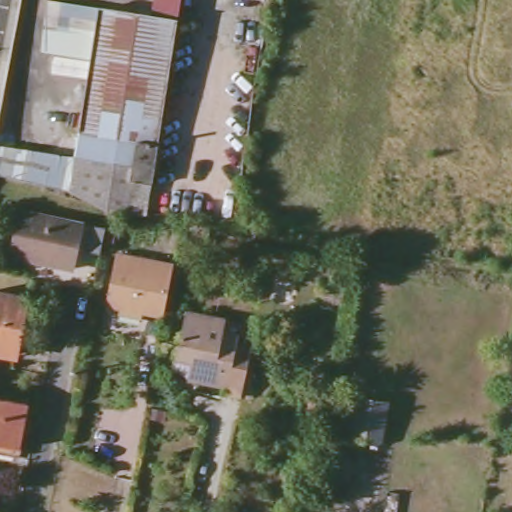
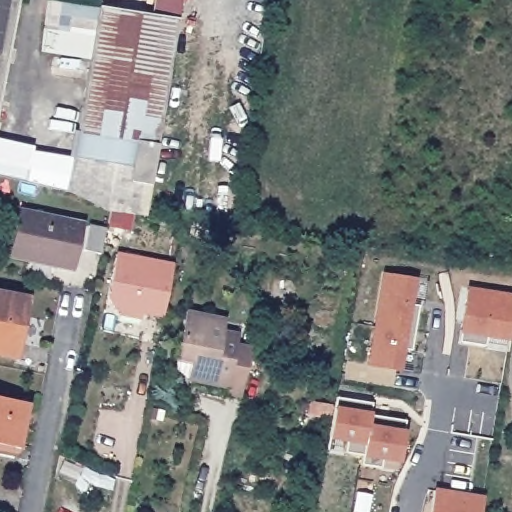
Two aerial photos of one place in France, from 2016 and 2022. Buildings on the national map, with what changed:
unchanged [(153,194),(134,190),(136,174),(140,147),(78,137),(99,12),(155,19),(158,0),(182,0),(178,24),(153,194)]
unchanged [(136,174),(134,190),(153,194),(150,219),(113,214),(68,200),(73,164),(136,174)]
unchanged [(74,226),(65,269),(47,264),(48,260),(21,254),(20,259),(4,255),(13,213),(74,226)]
unchanged [(97,230),(92,256),(76,252),(82,227),(97,230)]
unchanged [(175,264),(164,318),(144,314),(142,320),(120,316),(121,310),(115,309),(108,297),(117,253),(175,264)]
new [(382,279),(413,285),(409,309),(416,311),(408,356),(401,354),(398,375),(366,369),(382,279)]
new [(467,294),(512,300),(512,331),(510,344),(487,340),(485,351),(459,347),(467,294)]
unchanged [(20,344),(13,342),(10,357),(0,355),(0,295),(28,300),(20,344)]
unchanged [(217,330),(216,340),(230,344),(228,354),(245,358),(235,406),(217,402),(218,395),(186,389),(189,371),(170,367),(178,322),(217,330)]
demolished [(340,443),(343,397),(392,402),(386,444),(340,443)]
new [(344,443),(328,440),(336,399),(370,406),(368,418),(403,424),(396,464),(380,462),(378,471),(358,468),(360,458),(342,455),(344,443)]
unchanged [(15,449),(0,446),(0,400),(24,405),(15,449)]
new [(435,494),(485,502),(483,512),(432,512),(435,494)]

